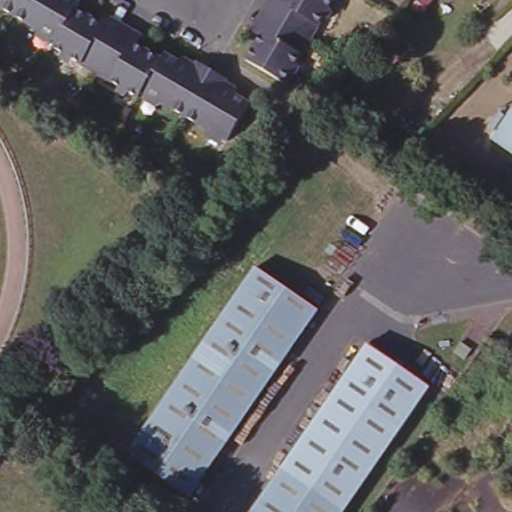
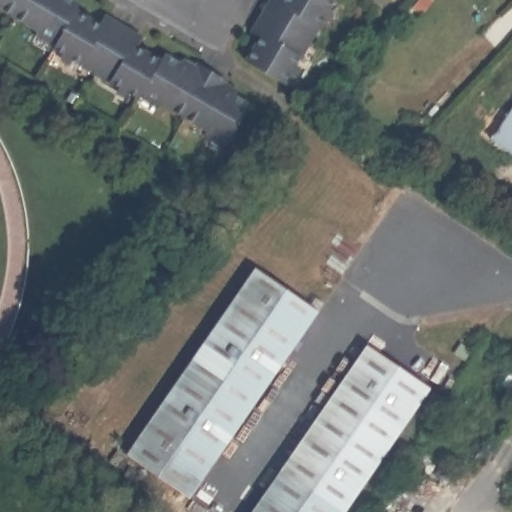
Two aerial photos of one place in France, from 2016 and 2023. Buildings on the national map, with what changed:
unchanged [(81,7),(109,24),(105,31),(132,47),(136,40),(164,58),(168,52),(197,69),(194,74),(219,89),(223,83),(252,101),(229,140),(147,89),(142,96),(57,46),(62,39),(0,2),(0,0),(85,0),(81,7)]
unchanged [(282,76),(242,52),(260,25),(266,29),(283,1),(281,0),(328,0),(282,76)]
unchanged [(512,156),(488,138),(512,106),(512,156)]
unchanged [(188,495),(126,452),(257,270),(319,312),(188,495)]
unchanged [(461,336),(472,343),(465,353),(455,346),(461,336)]
unchanged [(342,512),(245,512),(369,342),(431,387),(342,512)]

